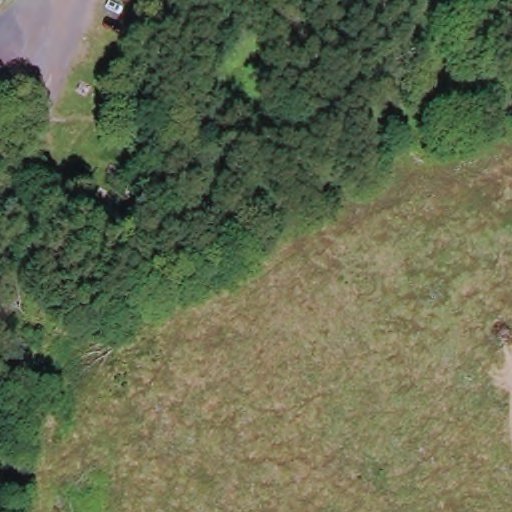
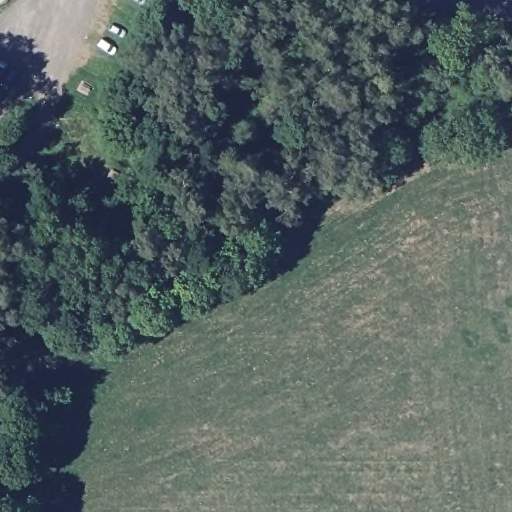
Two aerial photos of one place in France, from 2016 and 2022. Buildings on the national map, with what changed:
[]

